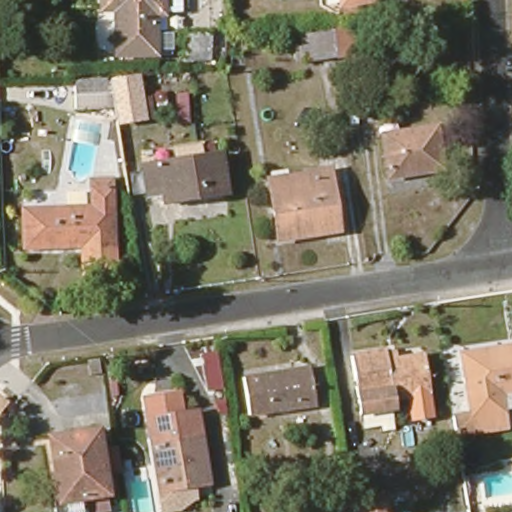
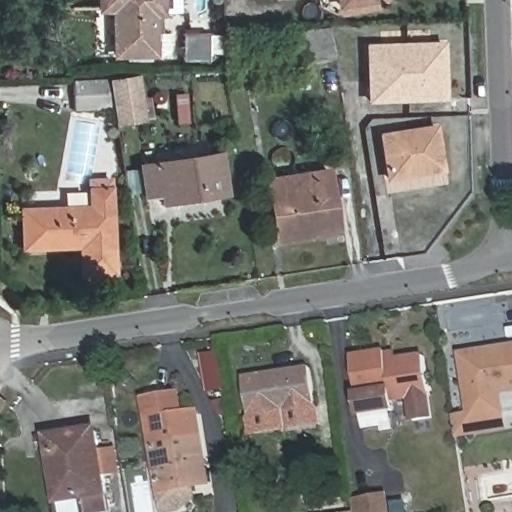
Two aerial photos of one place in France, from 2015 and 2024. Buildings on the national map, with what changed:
unchanged [(161,52),(120,52),(119,7),(105,7),(105,0),(169,0),(169,11),(160,11),(161,52)]
unchanged [(345,1),(345,0),(355,0),(345,1)]
unchanged [(298,31),(315,30),(331,27),(331,26),(351,25),(356,56),(336,58),(320,60),(303,62),(298,31)]
unchanged [(211,61),(184,61),(184,35),(211,35),(211,61)]
new [(448,101),(367,104),(365,44),(446,41),(448,101)]
unchanged [(119,104),(81,106),(80,74),(113,72),(114,76),(119,104)]
unchanged [(151,115),(120,119),(119,104),(114,76),(144,73),(151,115)]
unchanged [(189,122),(179,123),(176,95),(186,95),(189,122)]
unchanged [(447,165),(393,174),(387,131),(441,122),(447,165)]
unchanged [(168,190),(153,192),(147,161),(225,149),(232,189),(178,197),(170,199),(168,190)]
unchanged [(344,227),(282,236),(275,188),(273,175),(318,169),(335,165),(344,227)]
unchanged [(82,270),(80,244),(24,245),(21,205),(91,202),(90,185),(90,175),(111,174),(112,184),(115,270),(82,270)]
unchanged [(474,429),(471,411),(462,350),(512,343),(512,405),(502,406),(505,425),(474,429)]
unchanged [(430,390),(389,396),(390,406),(360,411),(351,351),(385,346),(385,348),(394,347),(396,354),(424,350),(430,390)]
unchanged [(100,374),(90,375),(89,362),(98,361),(100,374)]
unchanged [(316,405),(250,416),(244,378),(310,368),(316,405)]
unchanged [(182,503),(165,506),(161,486),(151,423),(150,413),(184,408),(200,405),(210,478),(195,480),(196,493),(182,503)]
unchanged [(61,505),(59,492),(49,423),(96,415),(100,437),(115,435),(120,457),(104,460),(107,483),(109,498),(61,505)]
unchanged [(361,512),(359,497),(390,491),(394,512),(361,512)]
unchanged [(331,512),(360,507),(360,512),(331,512)]

